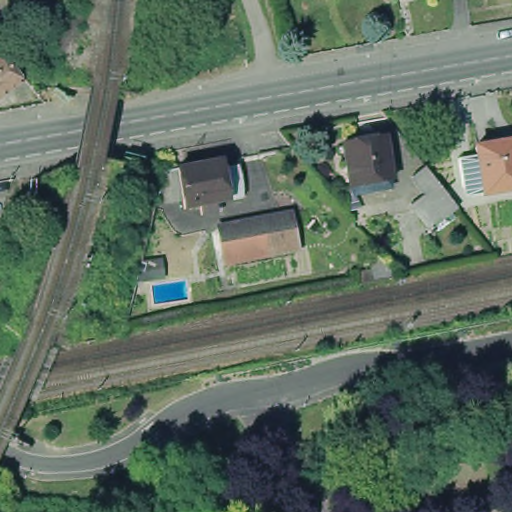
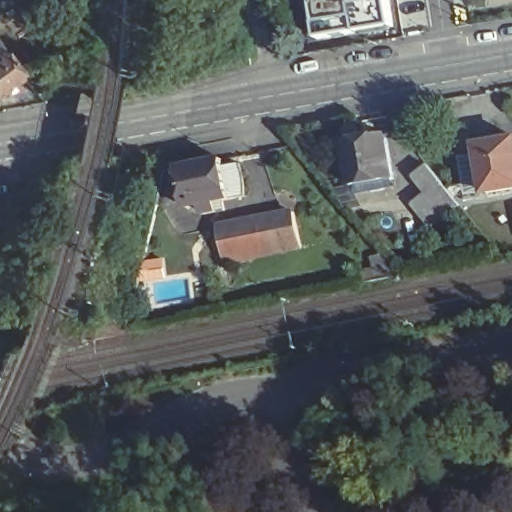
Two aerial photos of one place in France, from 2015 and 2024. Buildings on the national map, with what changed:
new [(316,40),(311,0),(390,0),(395,29),(316,40)]
unchanged [(413,0),(422,0),(413,2),(413,0)]
unchanged [(4,108),(0,103),(0,68),(5,65),(0,58),(0,51),(7,47),(34,86),(4,108)]
unchanged [(399,180),(387,182),(389,190),(377,192),(375,184),(357,187),(350,142),(391,135),(399,180)]
unchanged [(491,194),(489,182),(480,184),(477,154),(485,153),(484,146),(512,141),(512,190),(491,194)]
unchanged [(230,205),(216,207),(217,217),(204,220),(201,210),(187,213),(185,204),(157,209),(165,180),(179,173),(224,165),(230,205)]
unchanged [(434,227),(414,202),(426,192),(413,176),(427,165),(448,190),(460,205),(434,227)]
unchanged [(224,232),(273,222),(291,219),(300,217),(304,234),(307,251),(280,257),(279,252),(230,262),(224,232)]

